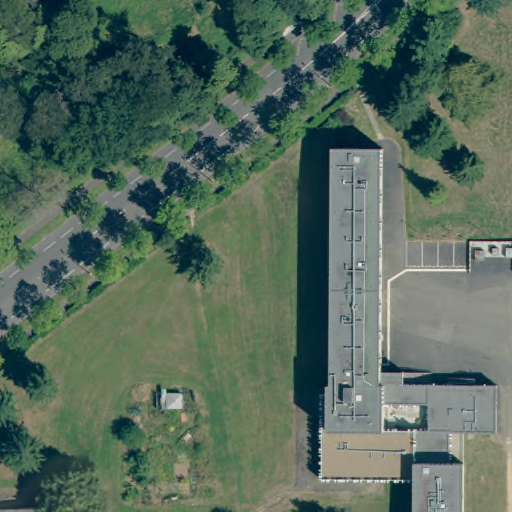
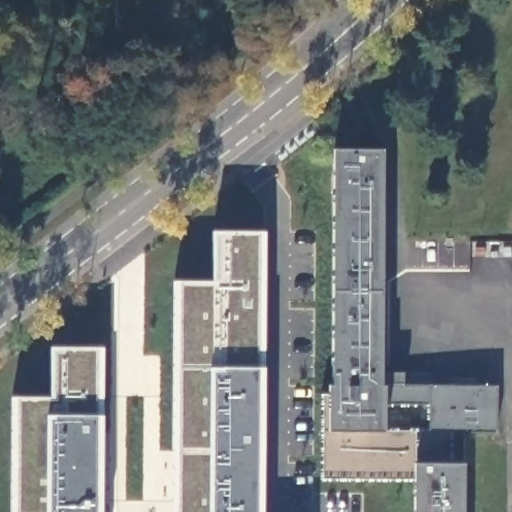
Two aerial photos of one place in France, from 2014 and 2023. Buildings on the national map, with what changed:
unchanged [(382,363),(382,386),(498,386),(497,433),(452,433),(452,462),(464,463),(464,512),(414,512),(414,480),(322,480),(323,395),(329,395),(329,386),(333,386),(334,149),(384,150),(383,241),(382,334),(382,363)]
new [(172,281),(214,282),(215,229),(264,230),(263,367),(263,512),(172,512),(172,281)]
new [(10,395),(51,396),(51,347),(102,348),(101,415),(101,512),(10,512),(10,395)]

